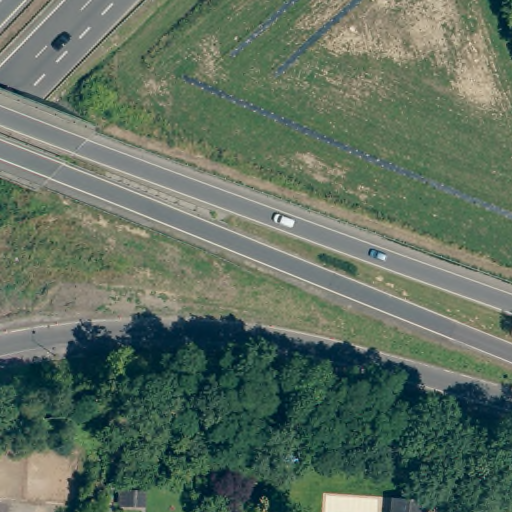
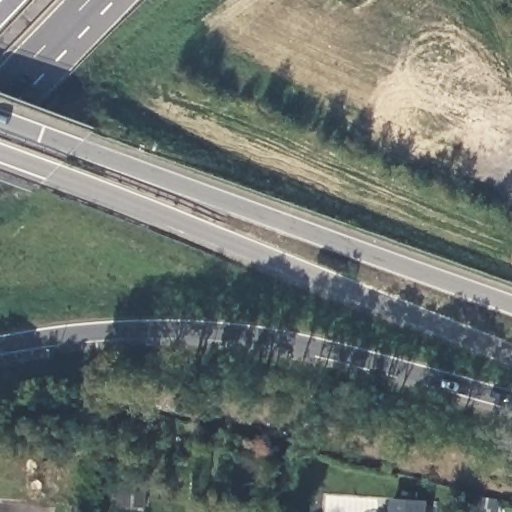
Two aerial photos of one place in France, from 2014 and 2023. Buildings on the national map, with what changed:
unchanged [(426,505),(425,512),(395,512),(396,502),(426,505)]

